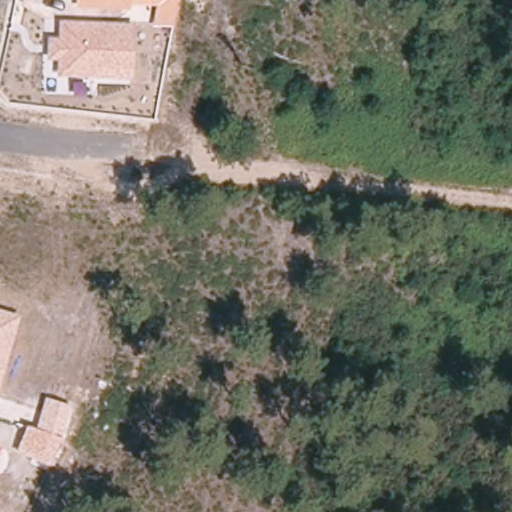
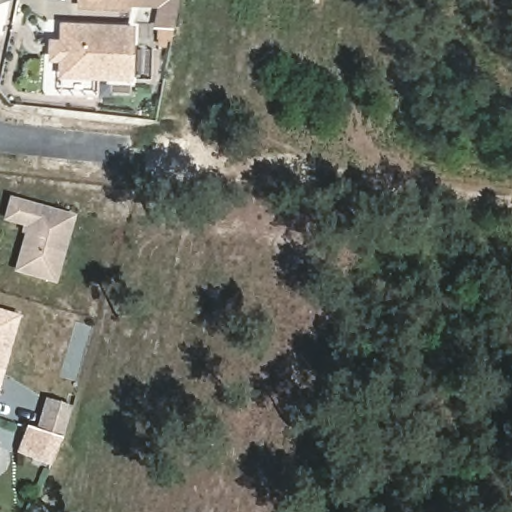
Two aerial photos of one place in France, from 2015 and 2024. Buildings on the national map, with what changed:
unchanged [(152,27),(157,6),(132,5),(132,10),(76,8),(76,0),(177,0),(172,29),(152,27)]
unchanged [(132,78),(57,74),(57,60),(47,59),(47,39),(59,39),(59,20),(135,24),(132,78)]
new [(10,199),(77,216),(57,285),(16,273),(26,235),(22,234),(24,228),(6,223),(10,199)]
unchanged [(0,309),(20,315),(0,380),(0,309)]
unchanged [(62,444),(51,465),(19,449),(28,426),(34,428),(42,398),(73,407),(62,444)]
unchanged [(0,444),(2,444),(0,448),(0,444)]

